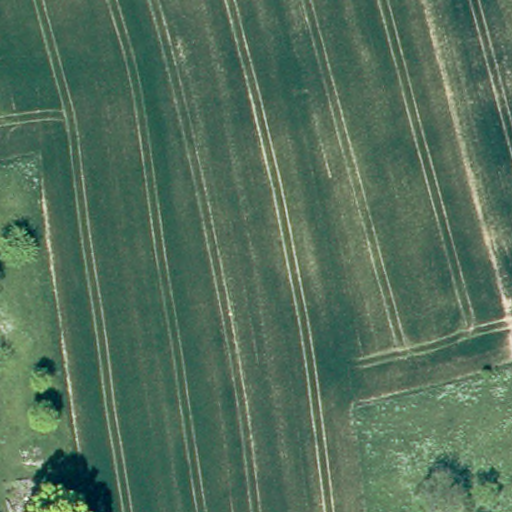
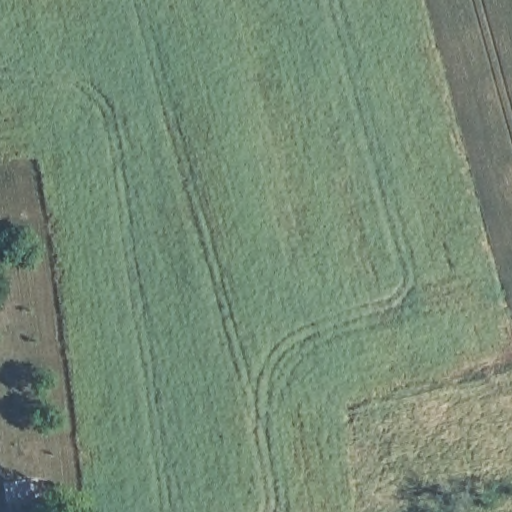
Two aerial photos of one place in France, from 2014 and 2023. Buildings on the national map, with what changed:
unchanged [(39,494),(6,498),(3,481),(35,476),(39,494)]

